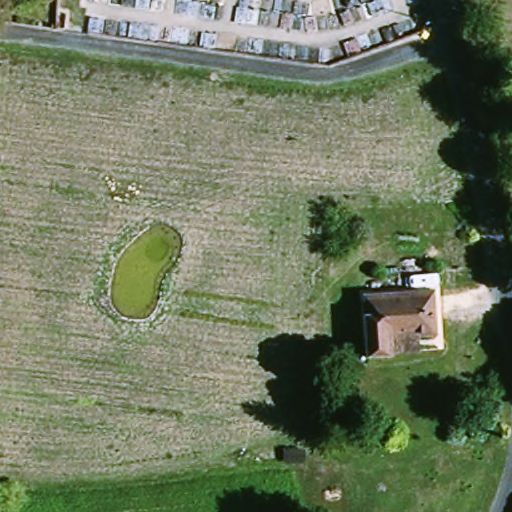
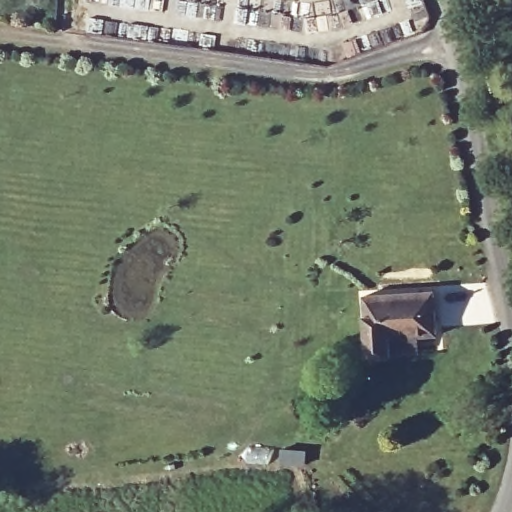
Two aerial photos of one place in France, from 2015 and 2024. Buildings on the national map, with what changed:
unchanged [(440,337),(420,338),(422,354),(397,356),(397,360),(374,362),(367,299),(436,293),(440,337)]

